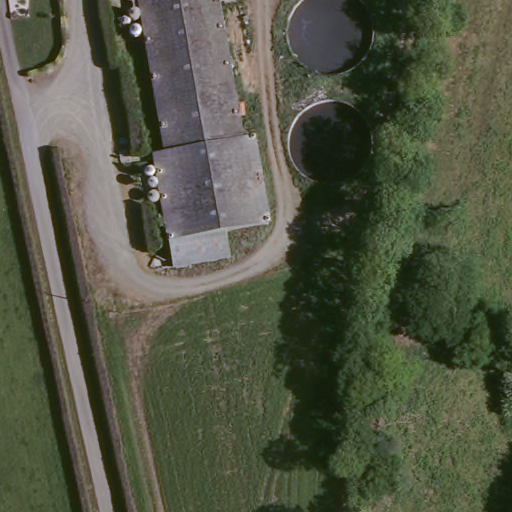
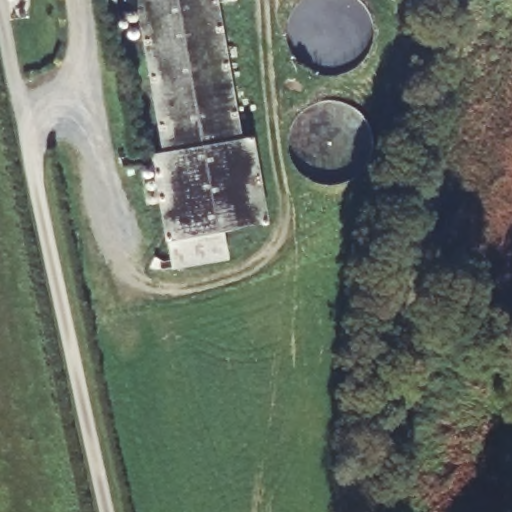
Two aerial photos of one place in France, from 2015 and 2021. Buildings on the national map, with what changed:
unchanged [(238,138),(251,136),(267,226),(167,245),(150,155),(163,153),(135,0),(213,0),(238,138)]

